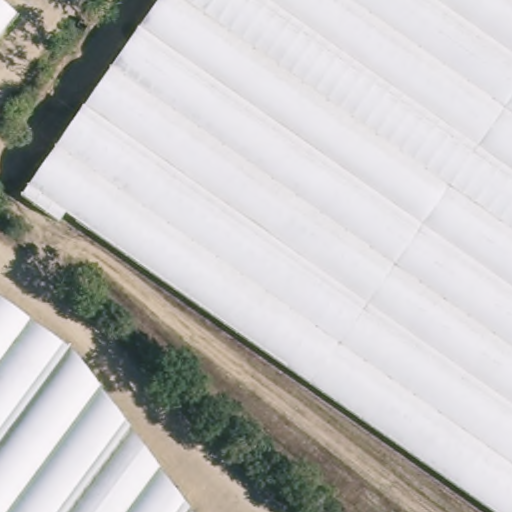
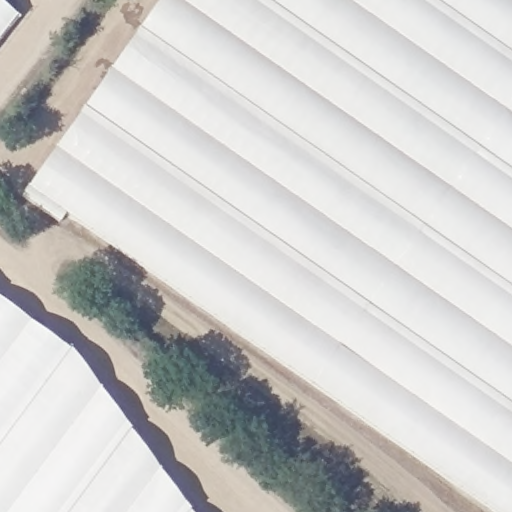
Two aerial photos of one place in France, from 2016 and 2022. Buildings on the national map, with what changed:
unchanged [(60,223),(21,195),(158,0),(512,0),(512,512),(491,512),(66,213),(60,223)]
unchanged [(0,38),(0,3),(17,16),(0,38)]
unchanged [(189,512),(0,512),(0,298),(71,351),(189,512)]

